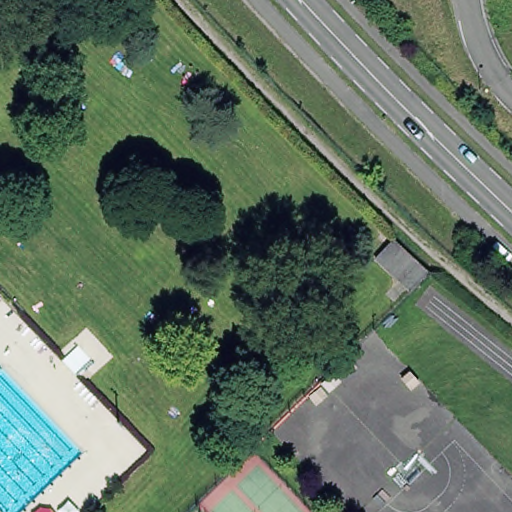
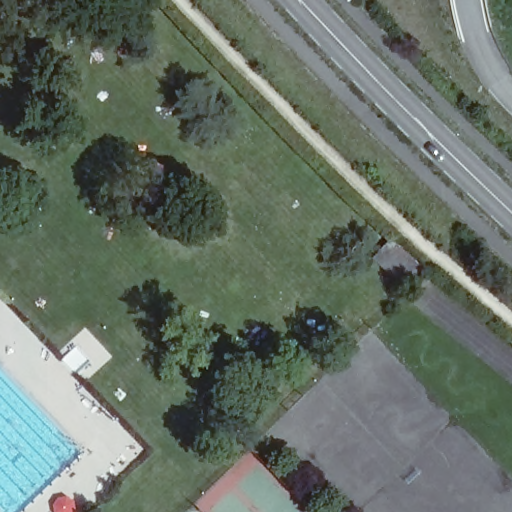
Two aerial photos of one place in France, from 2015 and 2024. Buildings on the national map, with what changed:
unchanged [(373,255),(394,239),(430,276),(414,295),(373,255)]

